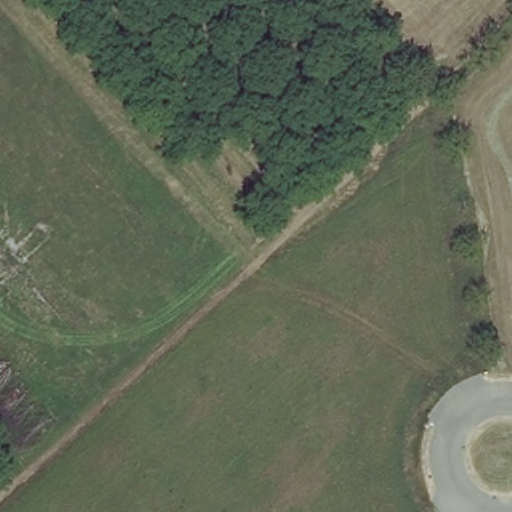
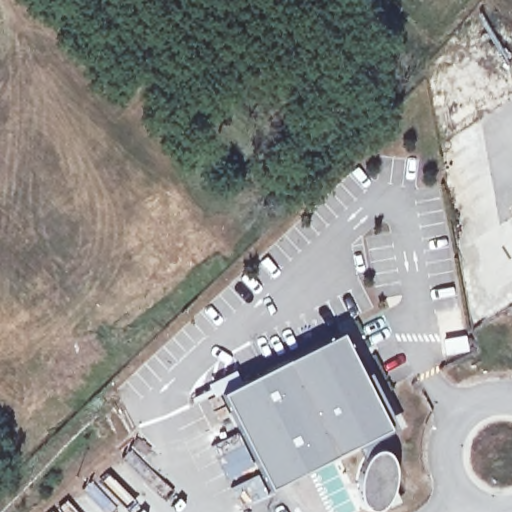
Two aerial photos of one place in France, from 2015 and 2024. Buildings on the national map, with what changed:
new [(305,351),(341,333),(388,429),(326,460),(268,490),(220,394),(305,351)]
new [(360,507),(363,454),(372,455),(372,451),(391,452),(389,488),(399,501),(388,508),(360,507)]

